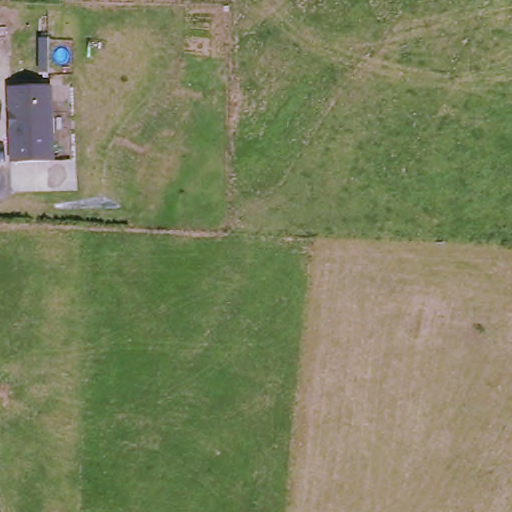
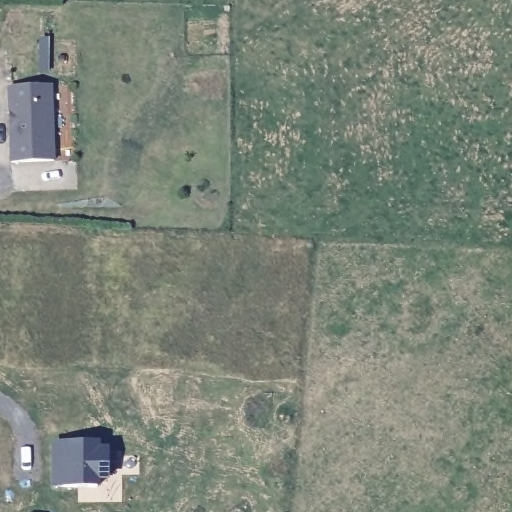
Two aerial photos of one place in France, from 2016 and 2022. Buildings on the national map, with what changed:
unchanged [(55,164),(13,166),(11,130),(10,117),(9,90),(51,88),(55,164)]
new [(51,444),(100,443),(101,449),(108,449),(108,481),(99,481),(99,488),(53,488),(51,444)]

